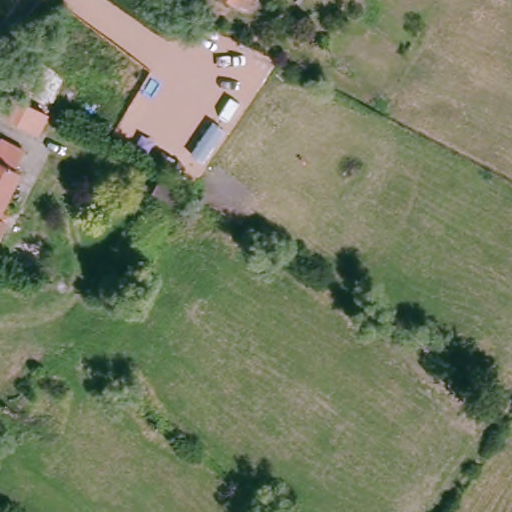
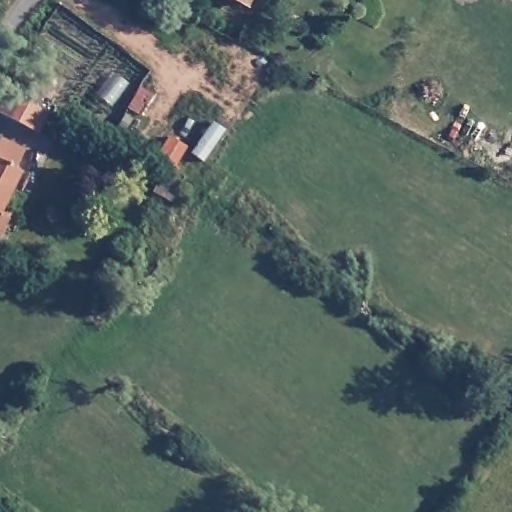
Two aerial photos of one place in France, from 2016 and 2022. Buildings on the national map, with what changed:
unchanged [(239,0),(251,0),(248,5),(239,0)]
unchanged [(18,108),(43,121),(35,136),(0,118),(0,113),(17,81),(28,88),(18,108)]
unchanged [(17,167),(23,170),(5,206),(12,210),(0,234),(0,151),(5,141),(25,151),(17,167)]
unchanged [(182,182),(173,200),(157,191),(167,174),(182,182)]

